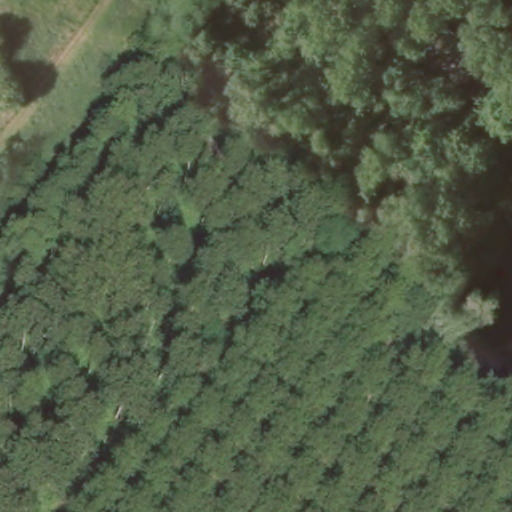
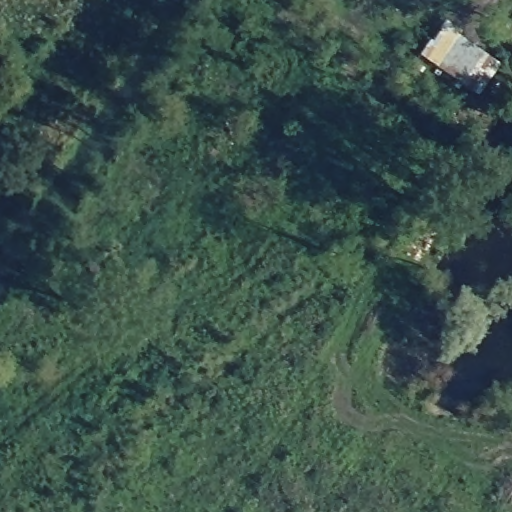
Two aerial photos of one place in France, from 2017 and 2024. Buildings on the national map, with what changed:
unchanged [(487,52),(467,88),(440,67),(461,34),(487,52)]

